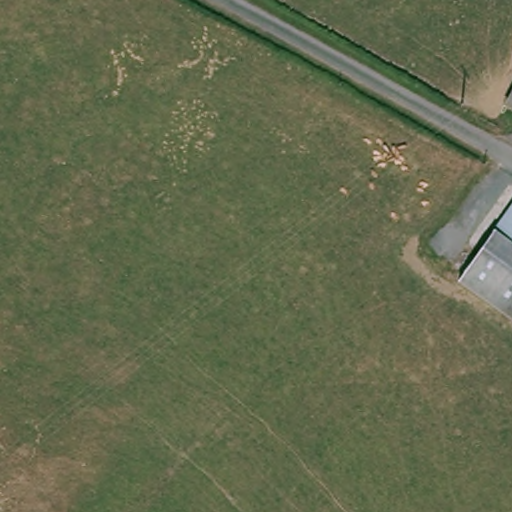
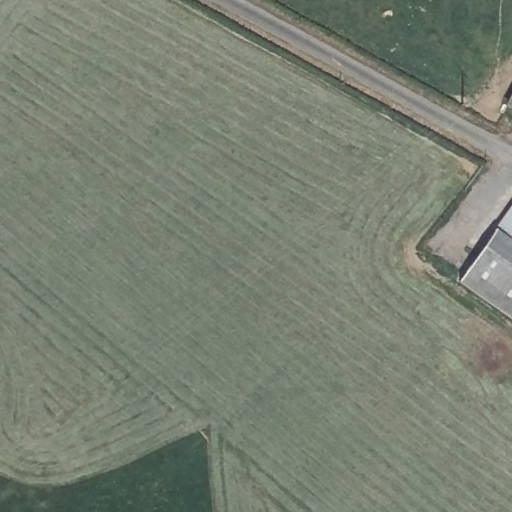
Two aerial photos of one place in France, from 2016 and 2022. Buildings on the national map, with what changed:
unchanged [(503,107),(512,90),(512,111),(503,107)]
unchanged [(456,281),(512,205),(512,322),(456,281)]

